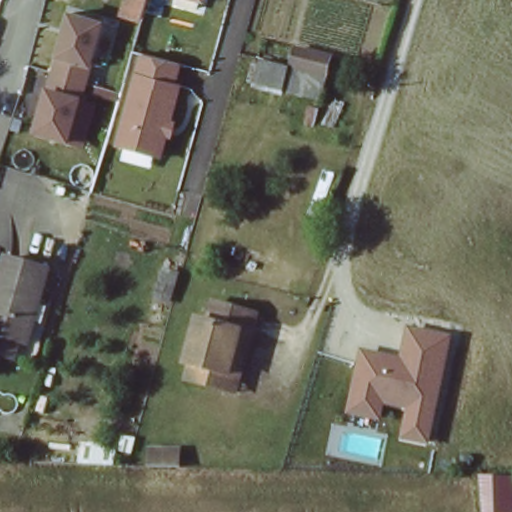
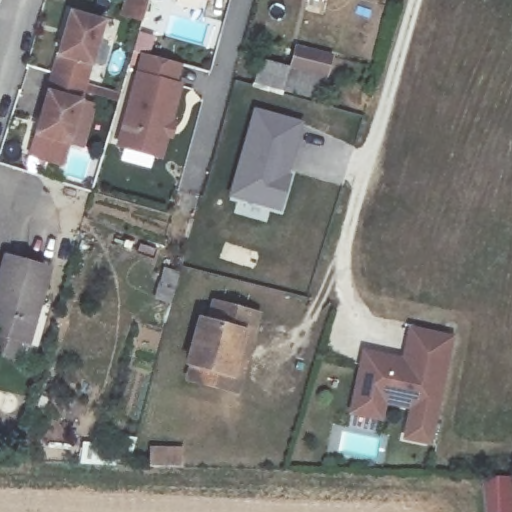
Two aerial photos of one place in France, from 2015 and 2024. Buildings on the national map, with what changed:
unchanged [(206,2),(198,0),(206,0),(206,2)]
demolished [(207,8),(230,16),(221,41),(198,33),(207,8)]
unchanged [(73,148),(35,138),(69,12),(108,21),(73,148)]
unchanged [(284,95),(252,87),(256,57),(287,67),(292,42),(334,56),(326,104),(284,95)]
unchanged [(177,83),(183,85),(173,121),(176,122),(171,141),(167,140),(161,159),(115,147),(140,53),(181,64),(177,83)]
new [(253,109),(303,123),(289,177),(291,177),(282,210),(227,197),(253,109)]
unchanged [(21,343),(17,365),(0,360),(0,261),(3,252),(56,268),(34,347),(21,343)]
unchanged [(210,389),(189,384),(194,368),(187,366),(200,320),(210,322),(216,301),(258,313),(253,335),(237,397),(210,389)]
unchanged [(430,445),(401,440),(408,409),(385,405),(382,422),(348,415),(362,351),(403,358),(408,328),(454,336),(430,445)]
new [(147,432),(177,433),(176,450),(146,449),(147,432)]
new [(79,439),(114,440),(114,457),(79,456),(79,439)]
unchanged [(512,466),(512,505),(482,502),(477,464),(512,466)]

